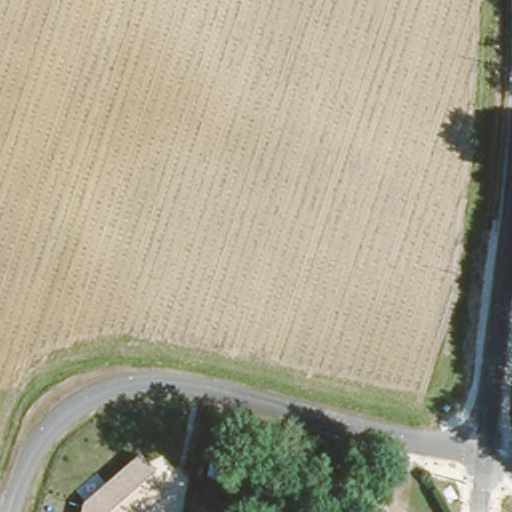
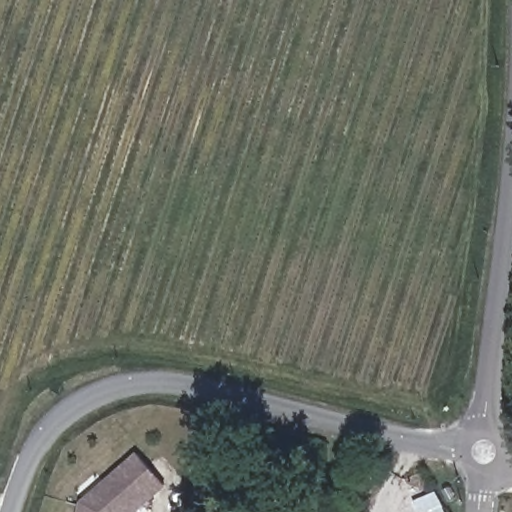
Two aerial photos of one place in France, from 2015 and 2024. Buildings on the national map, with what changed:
unchanged [(139,512),(79,512),(82,498),(138,453),(166,487),(139,512)]

